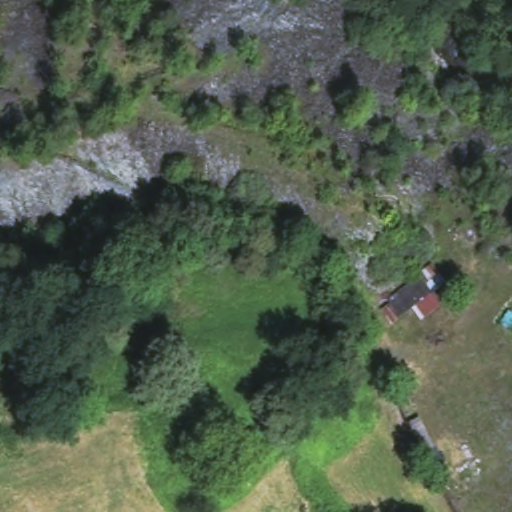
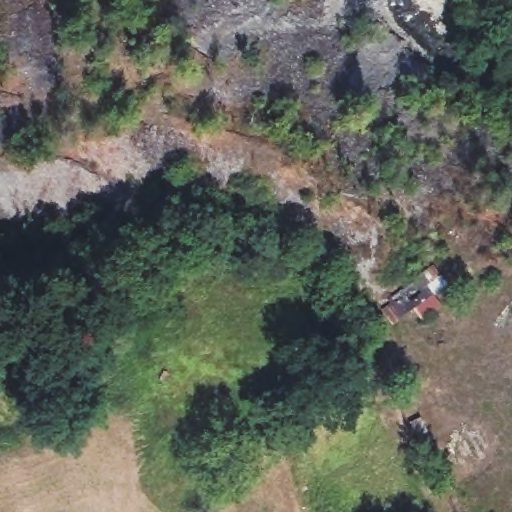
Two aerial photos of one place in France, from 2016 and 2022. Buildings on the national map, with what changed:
unchanged [(414,326),(392,294),(413,277),(436,308),(414,326)]

